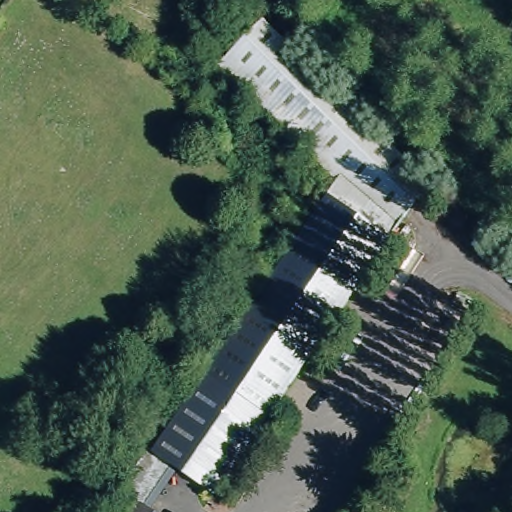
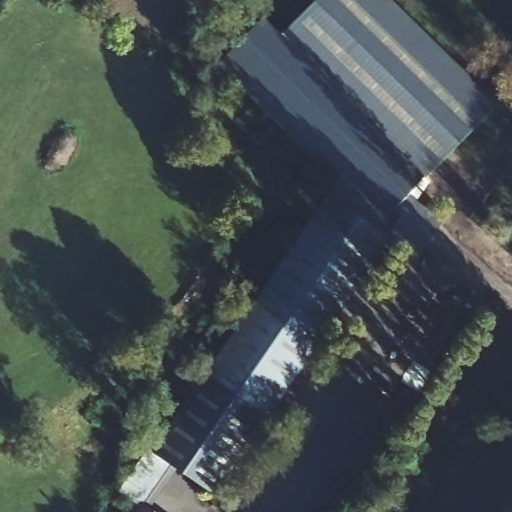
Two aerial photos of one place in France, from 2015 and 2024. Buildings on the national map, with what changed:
new [(316,0),(392,0),(497,103),(432,173),(285,32),(316,0)]
unchanged [(435,176),(390,236),(332,196),(345,179),(212,57),(263,11),(435,176)]
unchanged [(332,196),(390,236),(214,491),(171,459),(154,446),(332,196)]
unchanged [(171,459),(141,498),(124,484),(154,446),(171,459)]
unchanged [(159,512),(130,512),(141,498),(159,512)]

